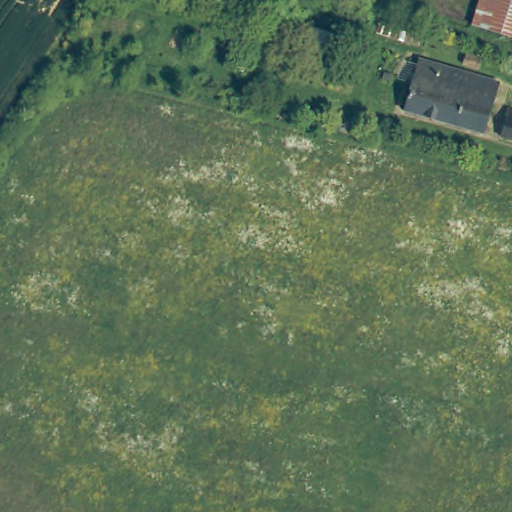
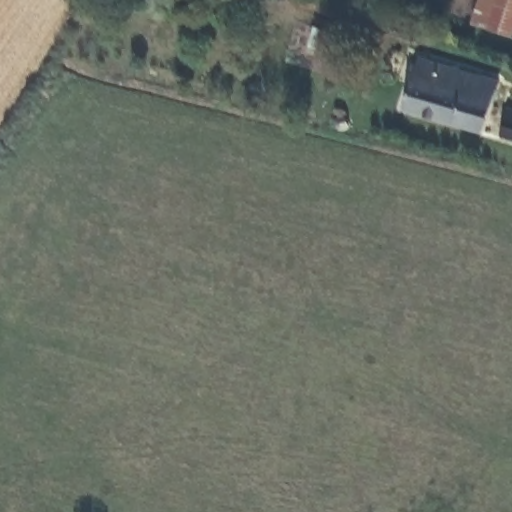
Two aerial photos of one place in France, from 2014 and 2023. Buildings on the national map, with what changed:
unchanged [(479,0),(497,0),(487,33),(471,28),(479,0)]
unchanged [(512,33),(509,41),(487,33),(497,0),(512,0),(512,33)]
unchanged [(406,111),(421,60),(469,74),(496,81),(490,101),(482,131),(406,111)]
unchanged [(508,110),(512,111),(512,138),(502,136),(508,110)]

